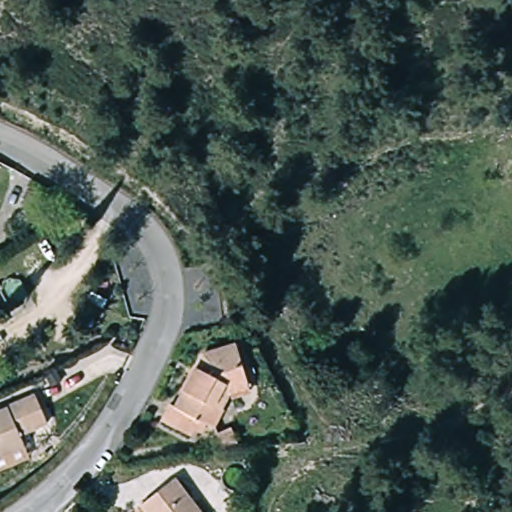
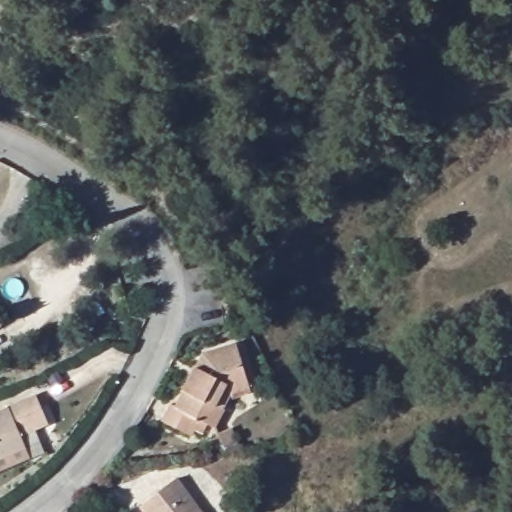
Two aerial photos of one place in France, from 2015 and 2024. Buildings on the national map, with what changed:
unchanged [(0,320),(0,319),(1,320),(0,320)]
unchanged [(243,342),(250,386),(233,387),(224,400),(229,402),(227,408),(219,418),(214,415),(206,426),(199,420),(193,428),(166,412),(176,394),(182,397),(213,345),(243,342)]
unchanged [(25,443),(0,456),(0,407),(5,405),(25,443)]
unchanged [(205,512),(134,512),(180,478),(205,512)]

